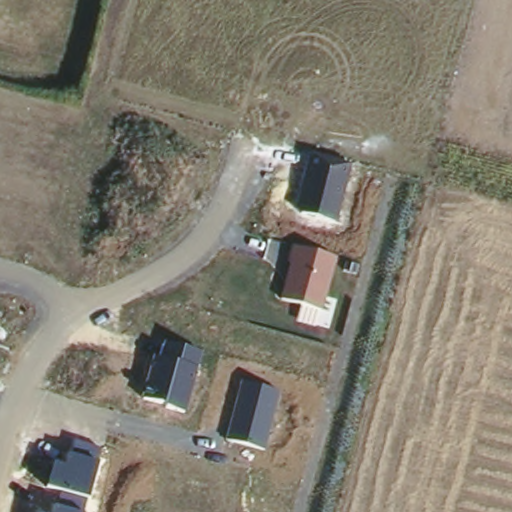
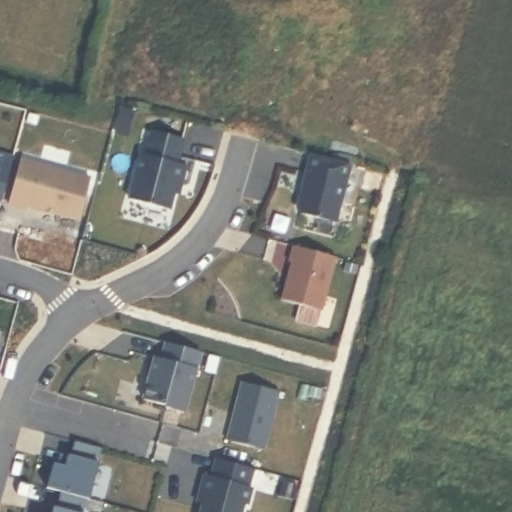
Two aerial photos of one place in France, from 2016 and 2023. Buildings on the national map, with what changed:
new [(185,141),(178,165),(187,168),(182,187),(178,185),(170,212),(131,201),(143,156),(147,157),(153,133),(185,141)]
new [(15,158),(3,203),(0,202),(0,154),(15,158)]
unchanged [(353,165),(339,224),(294,212),(309,155),(353,165)]
new [(30,209),(29,211),(10,206),(22,162),(92,181),(80,223),(56,216),(46,213),(30,209)]
new [(178,185),(182,187),(180,197),(175,196),(178,185)]
unchanged [(337,258),(322,313),(278,302),(289,264),(286,263),(291,246),(337,258)]
unchanged [(203,353),(186,413),(142,399),(155,357),(160,358),(165,343),(203,353)]
unchanged [(280,393),(267,450),(227,439),(242,381),(280,393)]
unchanged [(86,512),(52,512),(53,507),(56,508),(60,491),(46,488),(53,464),(64,466),(69,452),(72,453),(75,440),(103,447),(86,512)]
new [(249,489),(253,490),(248,506),(245,505),(243,512),(202,512),(206,497),(201,495),(206,477),(213,479),(217,461),(254,471),(249,489)]
new [(299,487),(295,502),(281,498),(285,483),(299,487)]
new [(206,497),(204,506),(198,505),(201,495),(206,497)]

